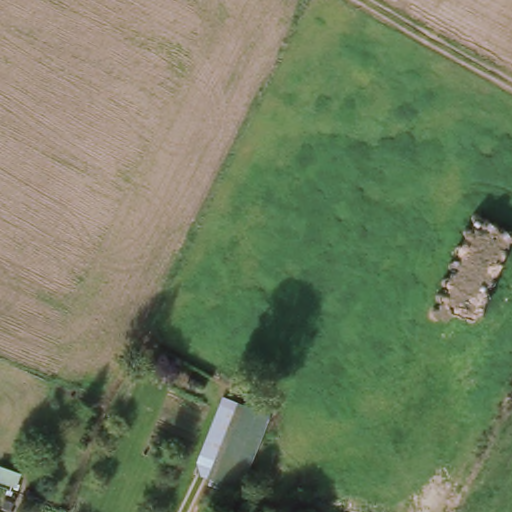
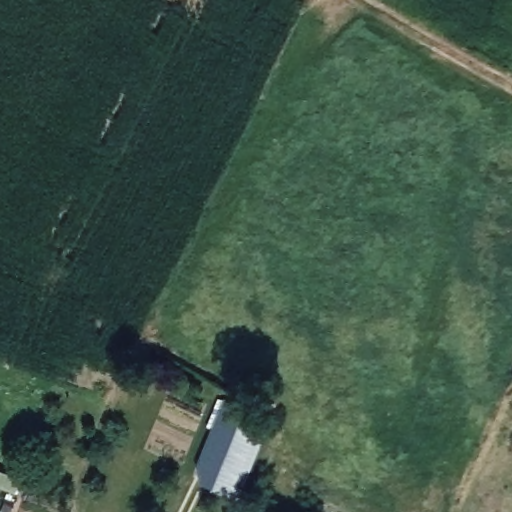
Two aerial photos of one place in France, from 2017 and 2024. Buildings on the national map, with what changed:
unchanged [(213,487),(230,449),(217,443),(234,407),(252,415),(217,490),(213,487)]
unchanged [(277,428),(244,502),(217,490),(252,415),(277,428)]
unchanged [(13,495),(0,491),(0,476),(18,483),(13,495)]

